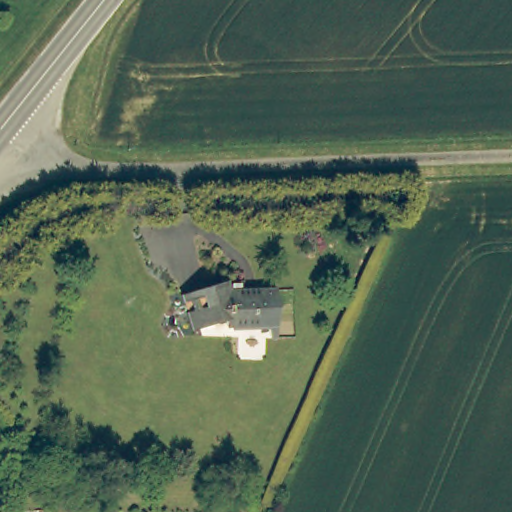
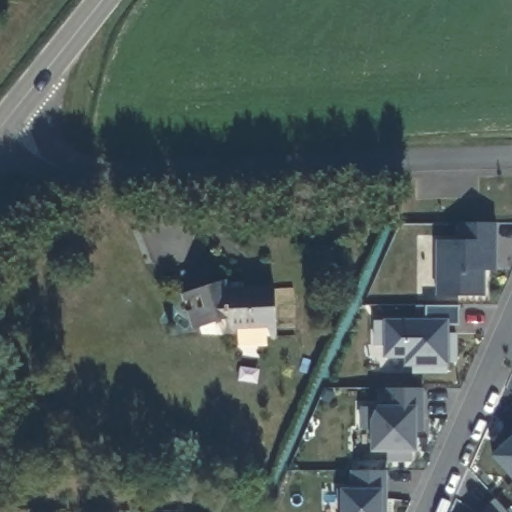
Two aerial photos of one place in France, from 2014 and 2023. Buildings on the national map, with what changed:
new [(497,270),(486,271),(486,296),(436,297),(435,242),(461,240),(458,223),(497,224),(497,270)]
unchanged [(222,278),(225,290),(276,288),(278,337),(270,338),(269,326),(231,329),(229,317),(192,329),(183,292),(222,278)]
new [(459,325),(448,325),(448,333),(458,333),(457,363),(448,364),(448,374),(413,375),(413,367),(405,367),(406,358),(385,357),(385,320),(426,320),(425,306),(459,306),(459,325)]
new [(424,432),(417,433),(417,453),(413,463),(388,463),(391,452),(371,451),(372,429),(359,430),(359,408),(377,406),(389,406),(386,388),(424,390),(424,432)]
new [(512,437),(512,479),(491,456),(512,437)]
new [(341,512),(341,489),(354,488),(351,471),(388,471),(387,512),(341,512)]
new [(480,512),(495,500),(507,512),(480,512)]

